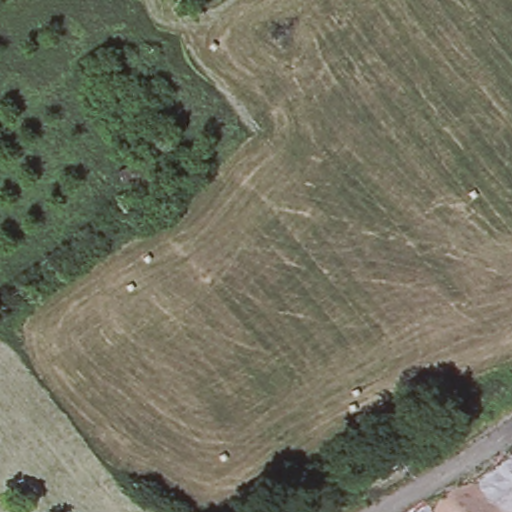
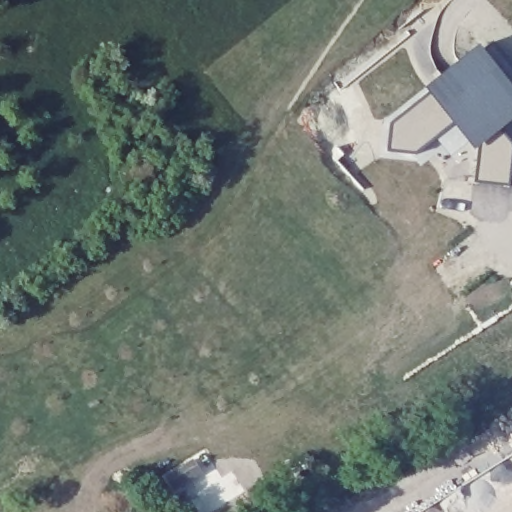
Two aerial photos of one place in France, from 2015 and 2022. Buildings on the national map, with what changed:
new [(512,67),(512,124),(501,132),(512,144),(512,150),(508,185),(473,181),(477,153),(473,150),(454,124),(415,152),(387,149),(391,122),(430,95),(423,87),(477,45),(493,41),(512,67)]
unchanged [(153,154),(161,177),(130,190),(120,168),(153,154)]

